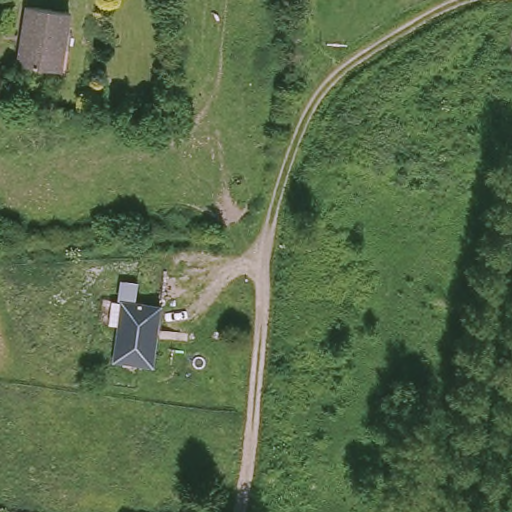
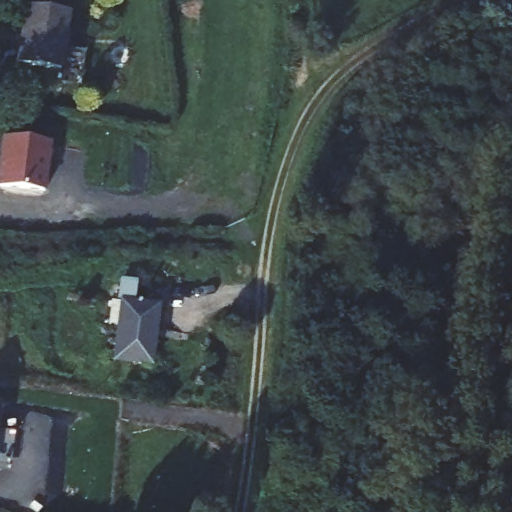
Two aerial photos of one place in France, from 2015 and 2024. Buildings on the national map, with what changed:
unchanged [(21,64),(29,1),(70,6),(63,69),(21,64)]
new [(52,142),(46,194),(0,188),(0,154),(2,137),(52,142)]
unchanged [(161,327),(150,325),(146,361),(119,357),(123,323),(113,322),(115,300),(126,300),(163,305),(161,327)]
new [(0,404),(2,404),(0,420),(0,404)]
new [(10,472),(0,471),(0,432),(14,433),(10,472)]

